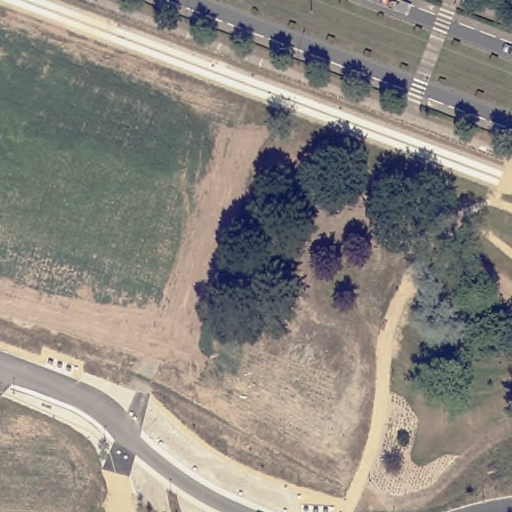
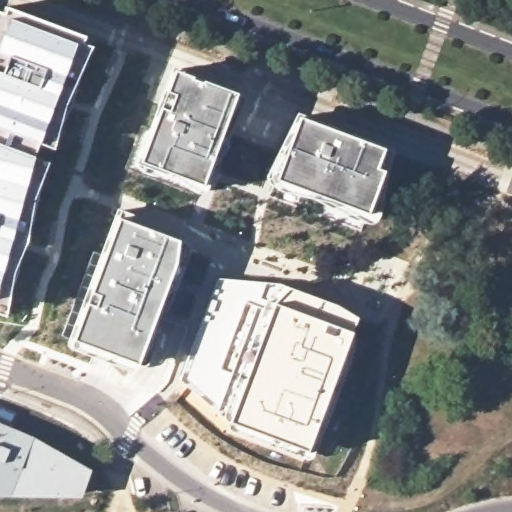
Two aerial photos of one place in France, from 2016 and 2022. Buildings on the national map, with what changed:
new [(1,14),(4,7),(82,36),(81,43),(90,46),(63,105),(52,148),(37,144),(33,156),(47,161),(32,197),(26,236),(11,273),(2,315),(0,314),(0,14),(1,14)]
new [(157,109),(152,106),(158,88),(165,90),(173,70),(165,68),(169,61),(173,62),(176,59),(238,80),(234,86),(242,89),(238,95),(247,97),(208,202),(156,184),(160,170),(138,162),(157,109)]
new [(303,114),(307,104),(330,113),(326,122),(333,125),(329,128),(346,134),(349,125),(366,131),(364,135),(389,142),(393,146),(392,153),(388,164),(379,214),(376,220),(371,222),(365,223),(352,220),(348,217),(347,220),(331,215),(270,191),(263,176),(275,180),(297,117),(292,118),(295,111),(303,114)]
new [(119,210),(177,230),(174,263),(136,361),(73,341),(119,210)]
new [(216,278),(275,282),(334,305),(355,323),(308,452),(230,427),(178,382),(216,278)]
new [(33,437),(62,453),(77,479),(78,483),(78,487),(76,490),(74,493),(70,495),(55,496),(0,496),(0,424),(33,437)]

